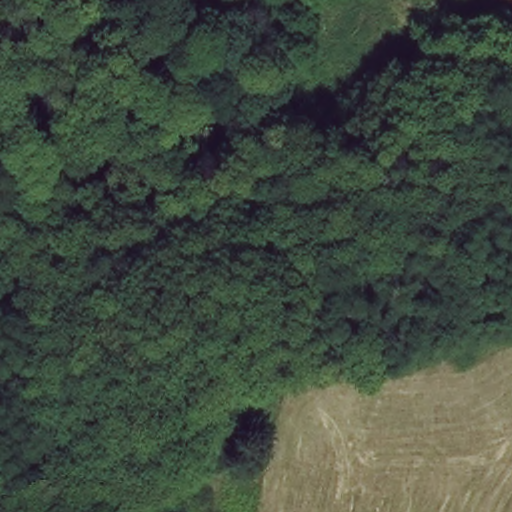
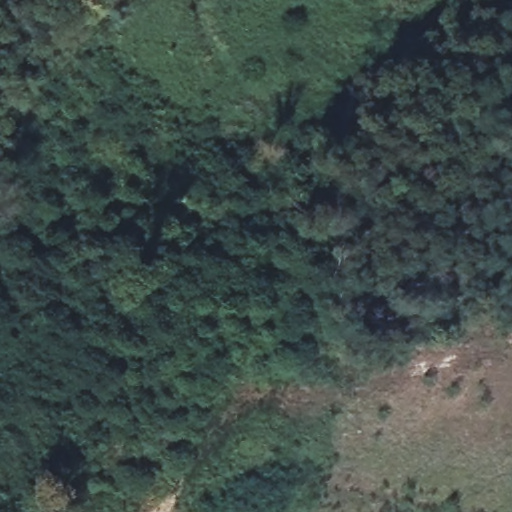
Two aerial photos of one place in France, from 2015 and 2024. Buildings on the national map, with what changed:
[]

